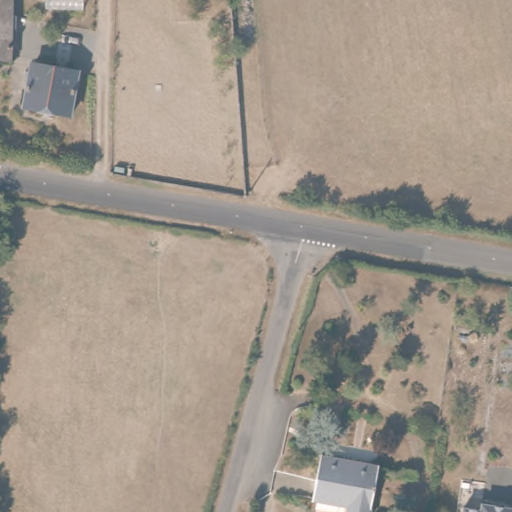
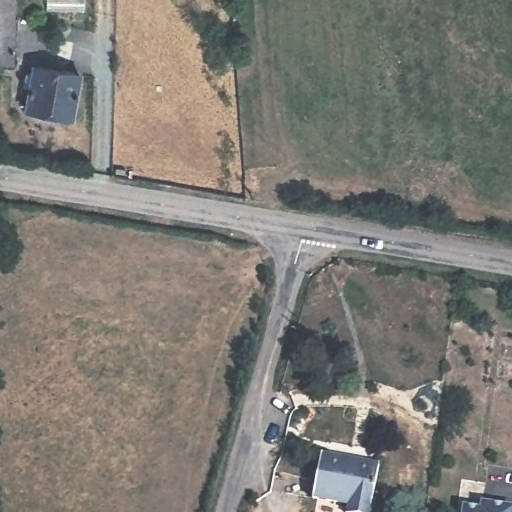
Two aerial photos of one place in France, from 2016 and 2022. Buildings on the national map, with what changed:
unchanged [(0,57),(0,0),(10,0),(9,56),(0,57)]
unchanged [(76,67),(68,108),(24,100),(31,60),(76,67)]
unchanged [(377,465),(369,512),(347,512),(348,507),(313,500),(320,456),(377,465)]
unchanged [(512,509),(512,512),(459,512),(459,508),(477,510),(478,505),(512,509)]

